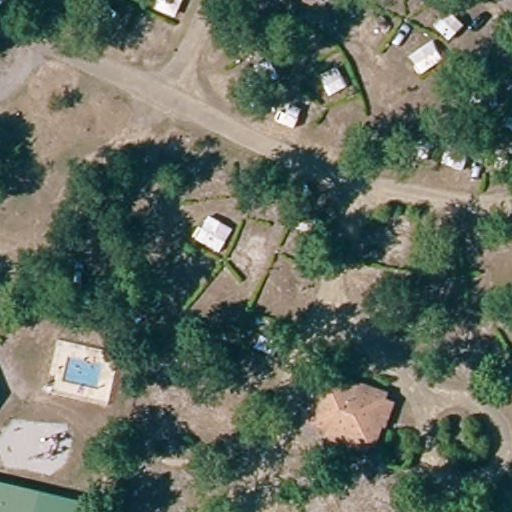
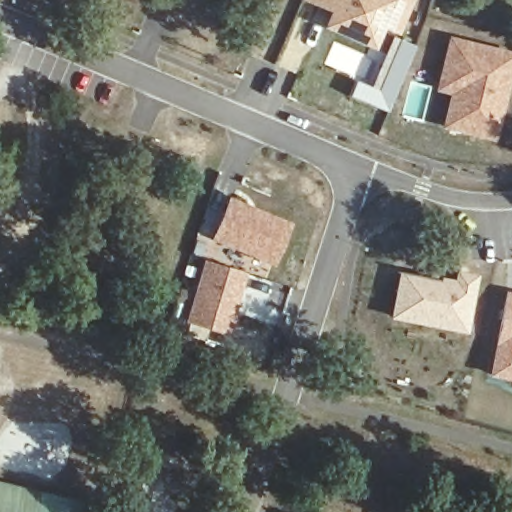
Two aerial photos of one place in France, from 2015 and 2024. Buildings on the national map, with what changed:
new [(385,28),(362,18),(355,34),(336,26),(342,11),(336,10),(335,13),(321,6),(305,0),(414,0),(399,34),(385,28)]
new [(336,13),(335,13),(336,10),(342,11),(336,26),(355,34),(362,18),(385,28),(374,54),(327,34),(336,13)]
new [(439,90),(446,61),(451,41),(512,56),(512,67),(506,91),(502,90),(500,98),(504,99),(494,140),(445,128),(453,94),(439,90)]
new [(243,206),(259,213),(287,226),(271,263),(213,238),(230,201),(243,206)]
new [(206,261),(243,273),(231,312),(233,313),(227,334),(187,321),(206,261)]
new [(401,274),(455,285),(457,276),(474,280),(463,333),(391,318),(401,274)]
new [(506,296),(512,297),(512,380),(490,376),(506,296)]
demolished [(383,402),(375,426),(380,428),(374,446),(368,444),(329,429),(313,423),(320,404),(326,387),(349,395),(353,384),(361,387),(386,396),(383,402)]
unchanged [(79,512),(0,512),(0,485),(80,505),(79,512)]

